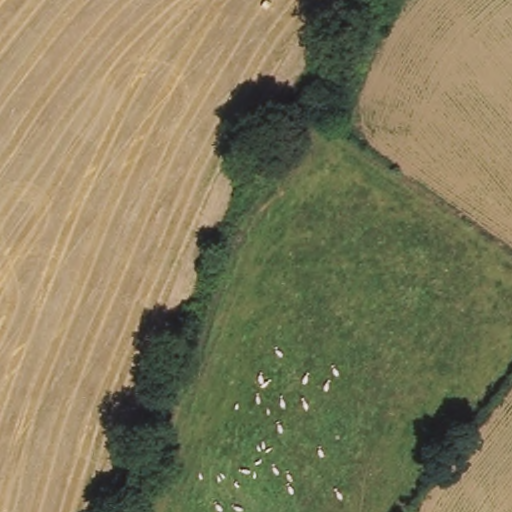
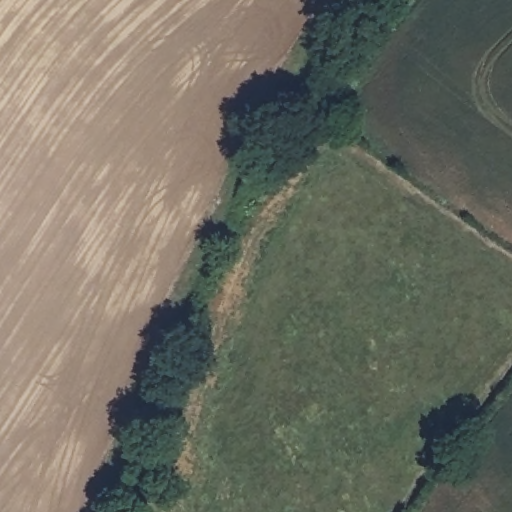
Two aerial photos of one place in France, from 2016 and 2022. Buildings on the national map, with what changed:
[]

